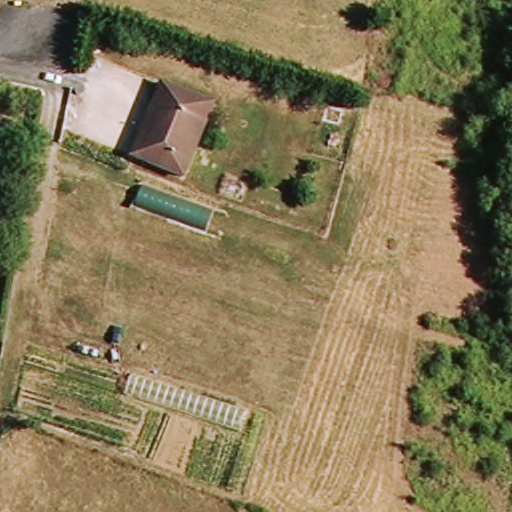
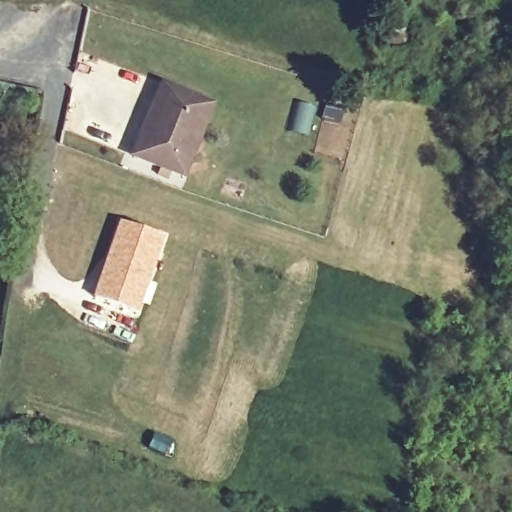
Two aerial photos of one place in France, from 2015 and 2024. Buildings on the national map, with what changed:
unchanged [(158,89),(211,102),(192,176),(140,163),(158,89)]
new [(118,220),(164,236),(145,298),(138,313),(92,296),(118,220)]

